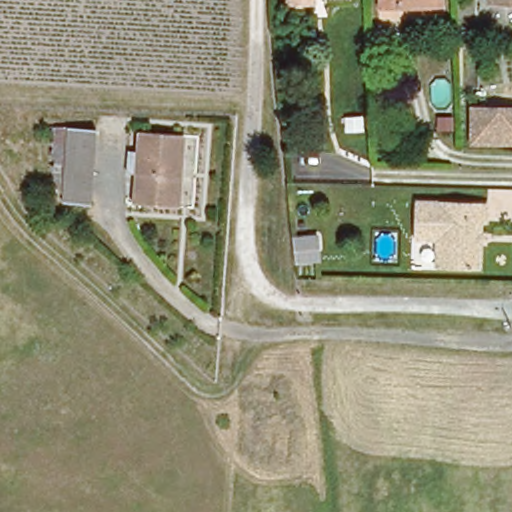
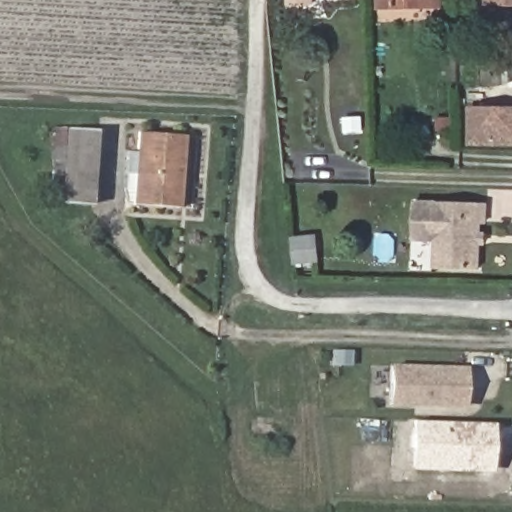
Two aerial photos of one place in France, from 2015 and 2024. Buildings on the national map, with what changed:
unchanged [(385,2),(385,0),(447,0),(428,1),(406,2),(385,2)]
unchanged [(495,1),(495,0),(512,0),(512,1),(495,1)]
unchanged [(512,110),(512,142),(473,141),(475,109),(512,110)]
unchanged [(50,171),(52,127),(66,128),(97,130),(92,205),(61,202),(61,194),(48,193),(50,171)]
unchanged [(183,130),(179,202),(135,199),(137,169),(126,168),(127,145),(138,146),(139,127),(183,130)]
unchanged [(486,217),(482,217),(482,228),(486,229),(486,238),(482,238),(481,264),(438,263),(439,235),(416,234),(417,197),(487,199),(486,217)]
unchanged [(318,235),(321,260),(296,263),(293,238),(318,235)]
new [(392,365),(467,367),(465,407),(389,405),(392,365)]
new [(493,472),(411,470),(412,420),(495,423),(493,472)]

